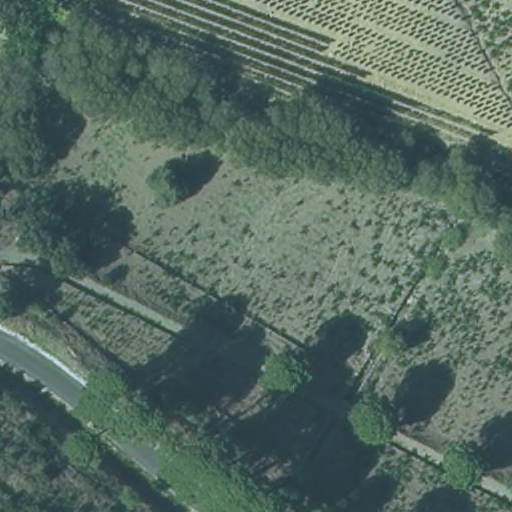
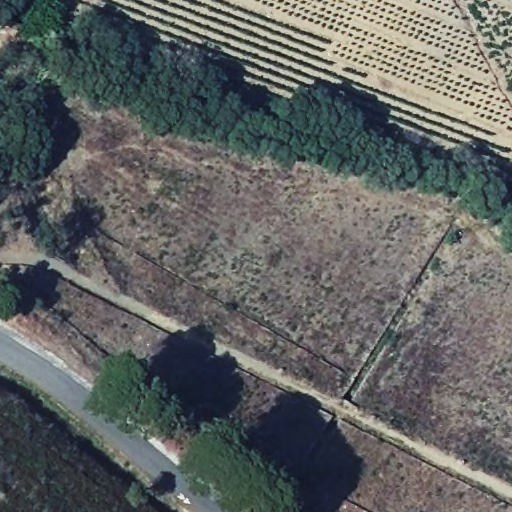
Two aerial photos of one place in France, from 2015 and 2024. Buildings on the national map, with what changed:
[]

